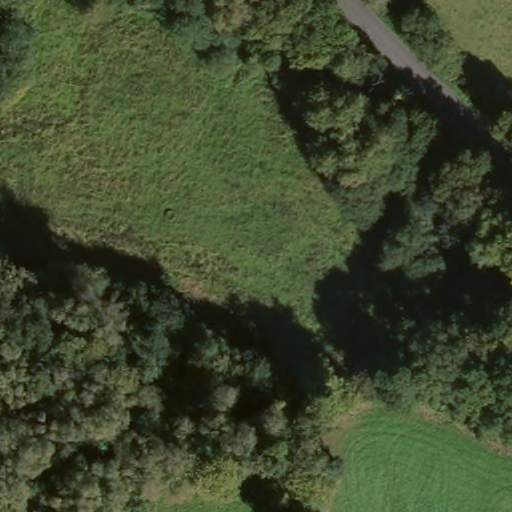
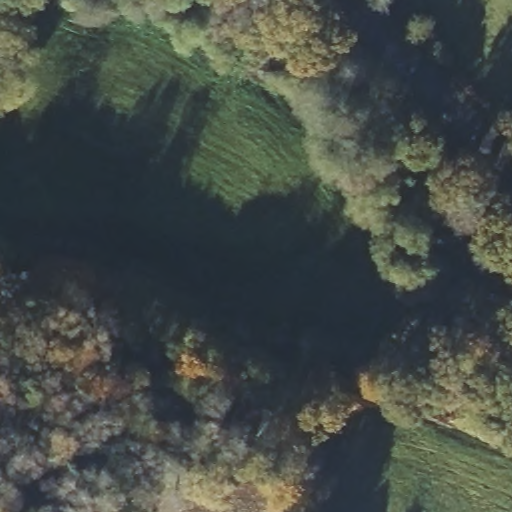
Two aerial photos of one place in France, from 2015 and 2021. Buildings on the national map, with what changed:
[]

